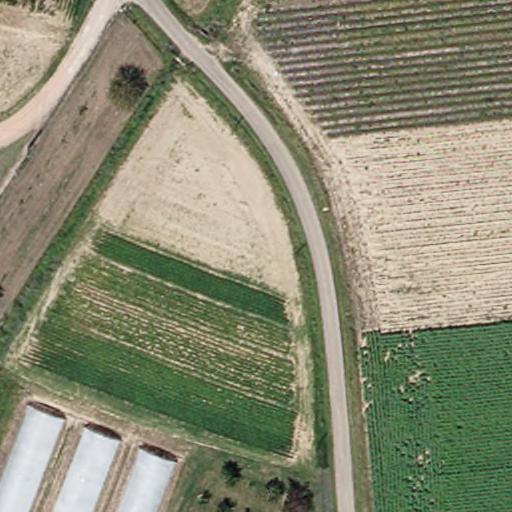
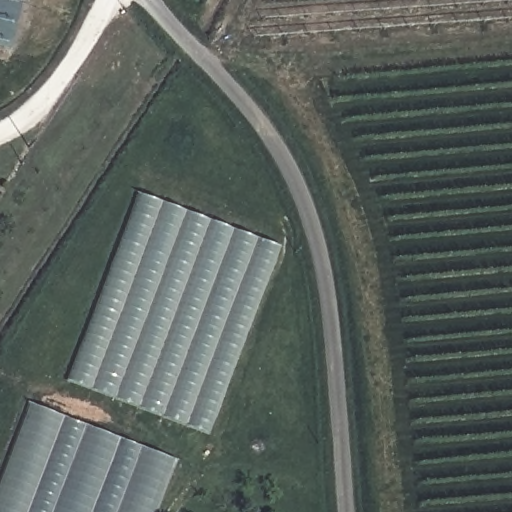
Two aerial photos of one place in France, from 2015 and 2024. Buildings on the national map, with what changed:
new [(278,247),(208,435),(66,383),(136,192),(278,247)]
unchanged [(0,512),(0,456),(23,397),(57,409),(17,512),(0,512)]
unchanged [(42,512),(79,417),(112,428),(79,512),(42,512)]
unchanged [(107,512),(134,440),(167,451),(144,512),(107,512)]

